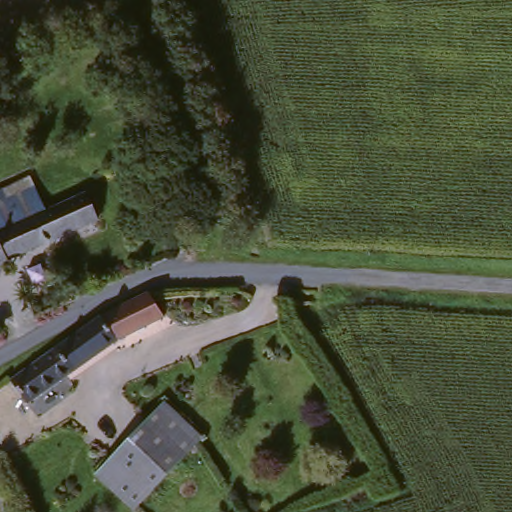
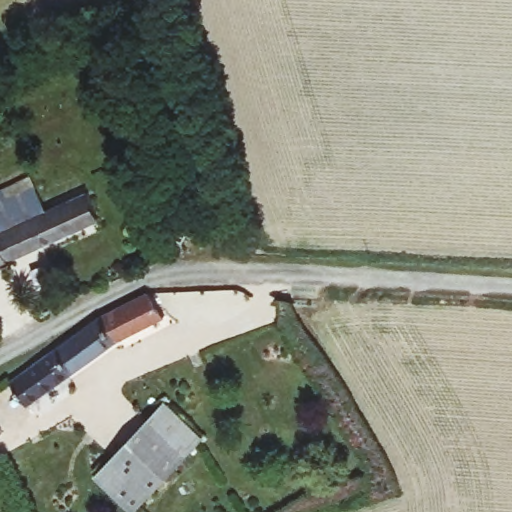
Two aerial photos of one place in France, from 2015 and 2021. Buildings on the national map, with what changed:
unchanged [(0,196),(29,183),(33,191),(43,217),(0,237),(0,196)]
unchanged [(88,197),(91,204),(97,220),(0,266),(0,237),(43,217),(88,197)]
unchanged [(98,321),(147,297),(155,312),(161,325),(116,345),(20,403),(6,378),(98,321)]
unchanged [(106,458),(159,410),(182,436),(196,448),(140,497),(126,482),(106,458)]
unchanged [(89,472),(106,458),(126,482),(140,497),(123,512),(108,495),(89,472)]

